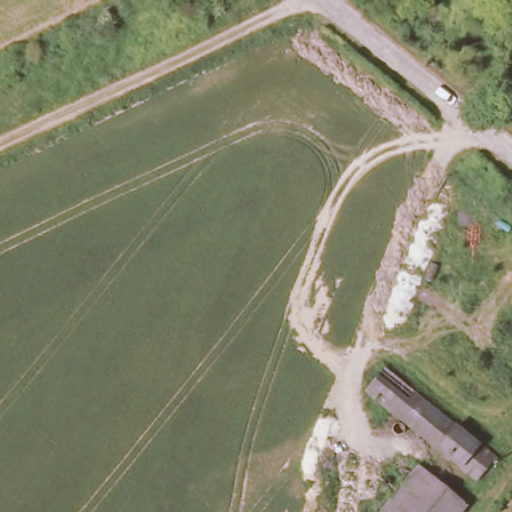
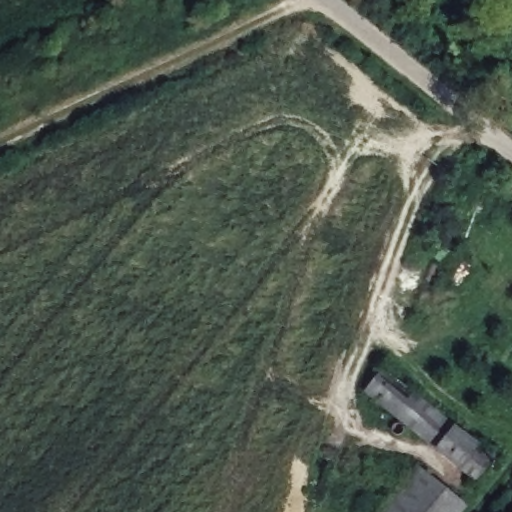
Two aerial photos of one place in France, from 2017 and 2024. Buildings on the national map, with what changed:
unchanged [(360,391),(379,368),(491,459),(473,482),(360,391)]
unchanged [(466,501),(457,512),(372,512),(414,461),(466,501)]

